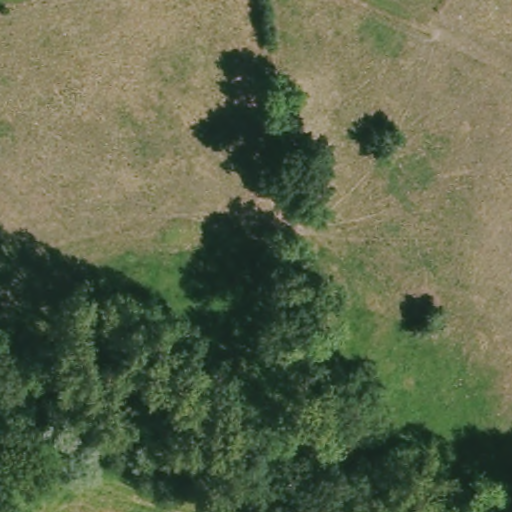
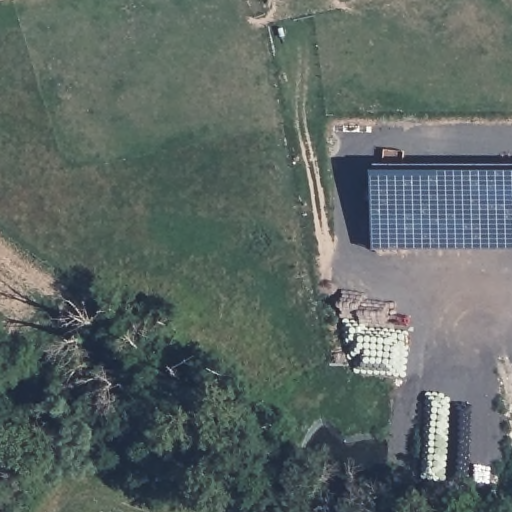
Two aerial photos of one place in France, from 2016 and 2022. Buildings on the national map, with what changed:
new [(377,250),(377,168),(512,168),(512,250),(377,250)]

